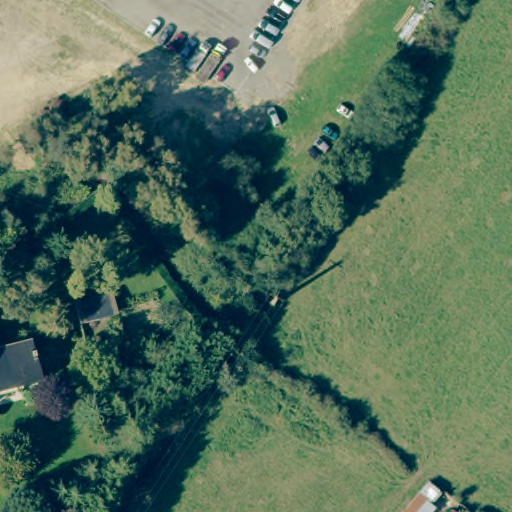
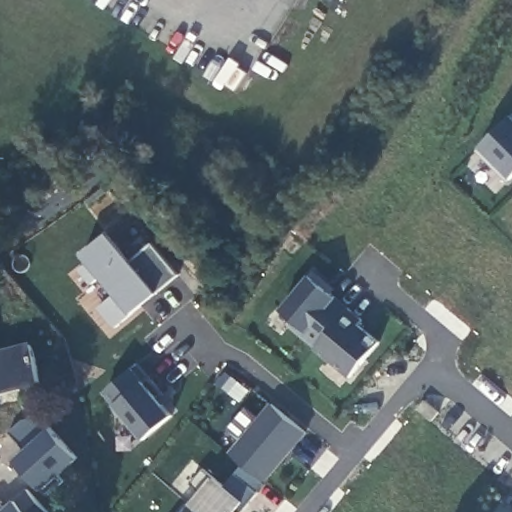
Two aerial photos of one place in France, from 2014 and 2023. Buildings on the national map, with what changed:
new [(512,115),(512,177),(507,181),(476,150),(512,115)]
new [(116,294),(102,278),(94,286),(80,269),(90,261),(82,252),(107,232),(130,260),(152,241),(180,274),(159,292),(134,313),(116,329),(99,308),(116,294)]
new [(313,272),(329,285),(326,289),(349,308),(348,309),(316,347),(290,326),(294,321),(280,310),(313,272)]
new [(316,347),(348,309),(362,320),(358,325),(379,342),(350,377),(315,349),(316,347)]
unchanged [(44,383),(0,393),(0,351),(34,342),(44,383)]
new [(139,361),(150,375),(146,381),(173,414),(145,440),(117,405),(105,390),(139,361)]
new [(273,404),(306,432),(265,482),(231,454),(273,404)]
new [(191,503),(201,491),(194,483),(205,469),(212,477),(224,487),(244,464),(265,482),(244,512),(242,512),(239,509),(236,512),(185,512),(191,503)]
demolished [(423,480),(441,494),(431,505),(439,512),(396,512),(423,480)]

